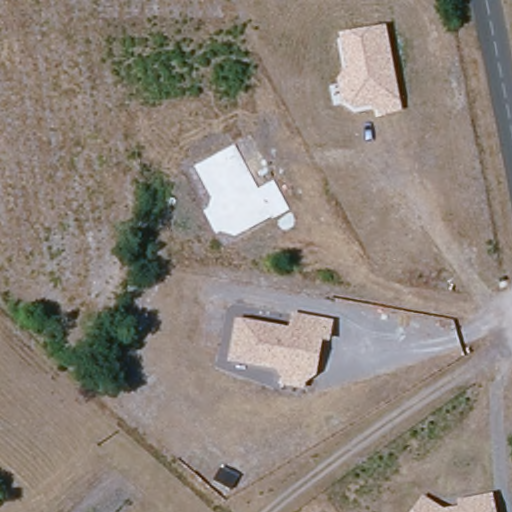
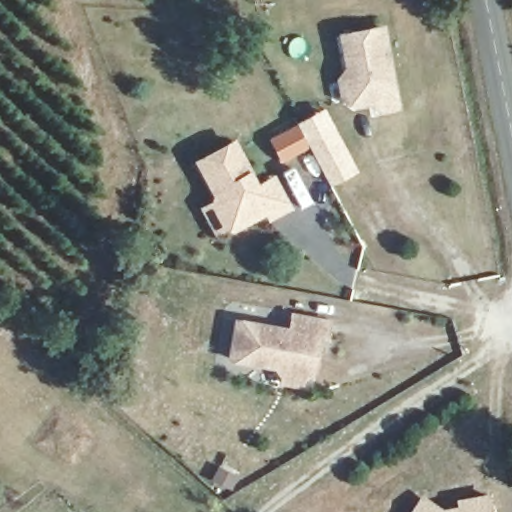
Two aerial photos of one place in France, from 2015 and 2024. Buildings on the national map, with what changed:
unchanged [(377,104),(355,109),(342,103),(337,81),(345,72),(340,34),(385,24),(400,99),(403,110),(379,114),(377,104)]
new [(295,124),(309,145),(279,161),(270,138),(295,124)]
new [(309,145),(306,141),(333,127),(357,171),(330,186),(309,145)]
new [(251,169),(258,183),(274,174),(292,208),(270,220),(265,214),(232,232),(227,229),(215,236),(200,208),(212,200),(213,194),(195,161),(235,137),(251,169)]
unchanged [(330,342),(322,342),(315,377),(305,384),(305,389),(279,385),(281,370),(230,361),(236,319),(290,328),(292,312),(334,320),(330,342)]
unchanged [(421,497),(443,508),(459,506),(458,500),(491,494),(494,512),(411,512),(421,497)]

